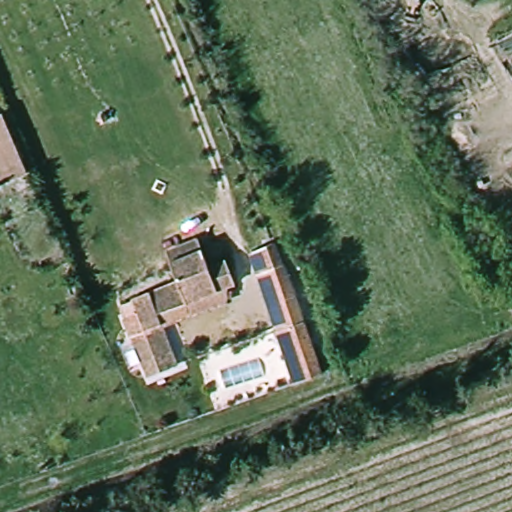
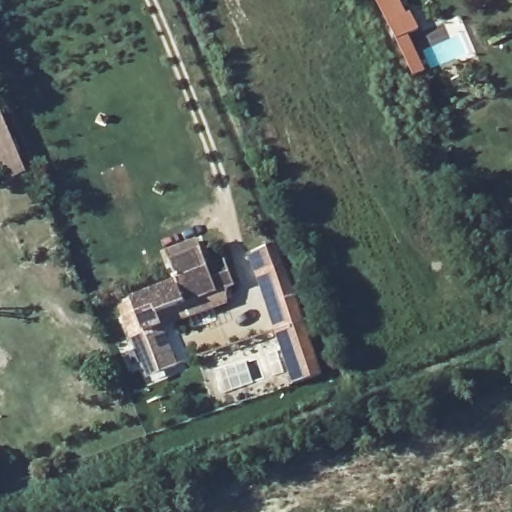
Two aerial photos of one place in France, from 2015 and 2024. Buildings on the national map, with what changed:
new [(401,0),(416,31),(408,35),(426,71),(414,78),(396,41),(374,0),(401,0)]
unchanged [(0,170),(0,118),(1,118),(20,161),(0,172),(0,170)]
unchanged [(166,334),(179,362),(148,375),(131,335),(143,329),(136,313),(125,318),(119,305),(131,299),(130,298),(175,279),(167,259),(163,250),(194,237),(198,246),(206,265),(223,258),(236,290),(230,293),(230,306),(166,334)]
unchanged [(255,270),(277,261),(321,368),(320,369),(298,377),(255,270)]

